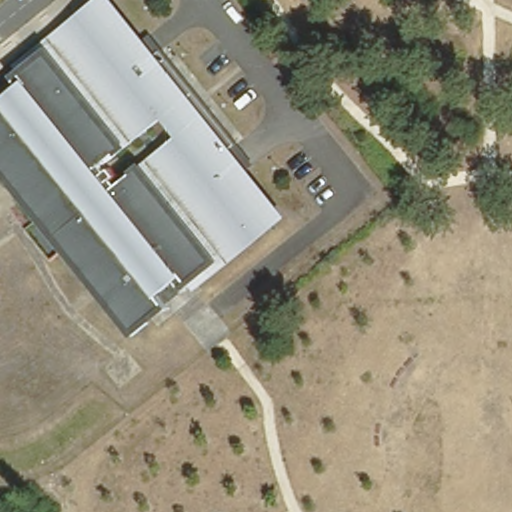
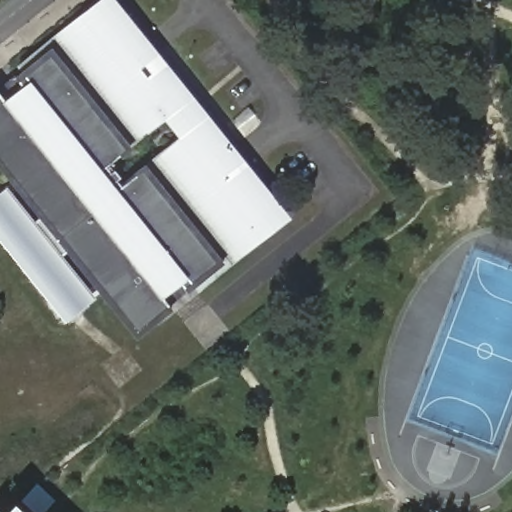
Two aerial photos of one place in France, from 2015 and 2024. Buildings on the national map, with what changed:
unchanged [(119,0),(285,215),(125,334),(0,176),(0,79),(95,0),(119,0)]
new [(94,298),(64,322),(0,241),(0,190),(5,186),(94,298)]

